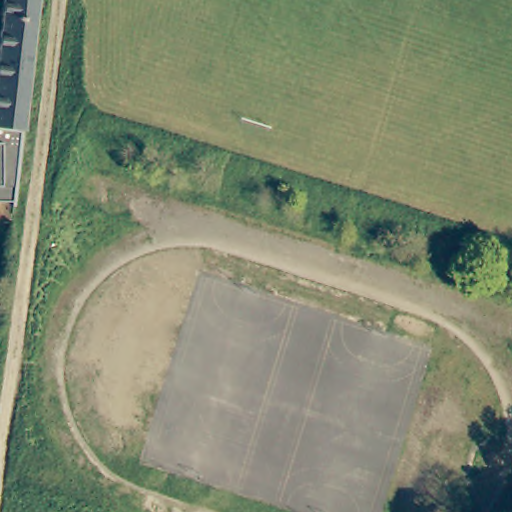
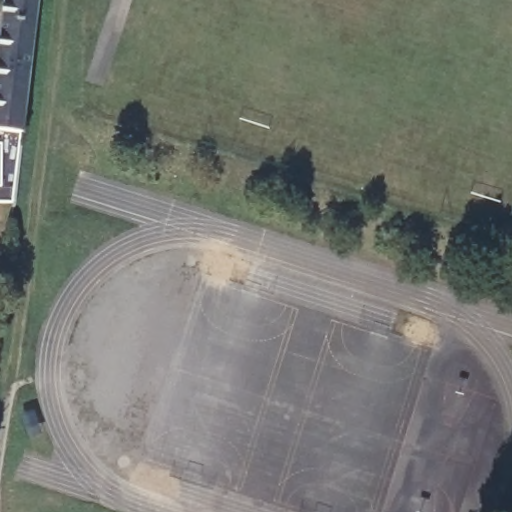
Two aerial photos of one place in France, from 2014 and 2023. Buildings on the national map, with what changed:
unchanged [(34,0),(9,205),(0,205),(0,0),(34,0)]

